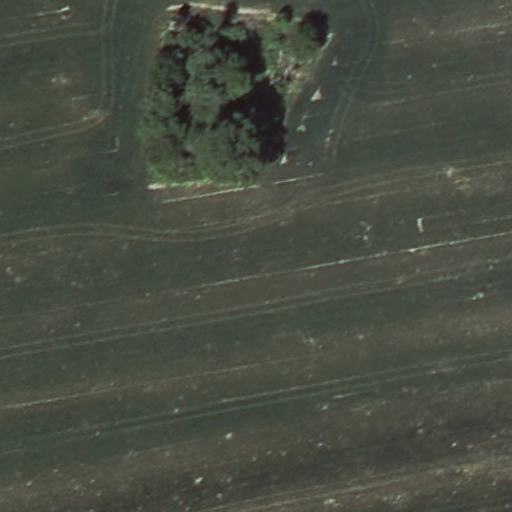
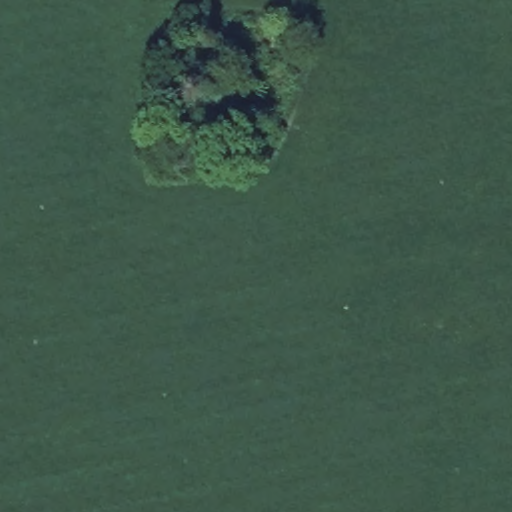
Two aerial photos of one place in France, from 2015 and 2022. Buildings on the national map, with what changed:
[]

